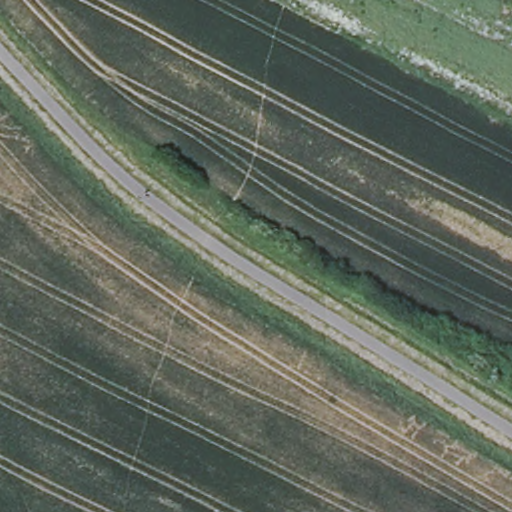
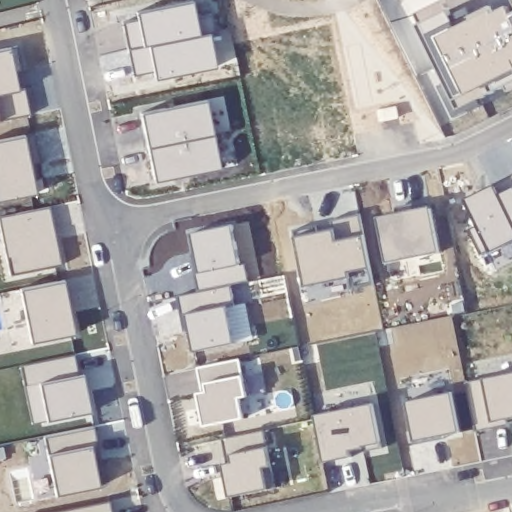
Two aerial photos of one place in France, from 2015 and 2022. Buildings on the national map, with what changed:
new [(424,39),(509,0),(512,0),(512,75),(453,103),(424,39)]
new [(123,22),(138,19),(136,12),(193,1),(196,17),(212,14),(216,32),(128,49),(123,22)]
new [(128,49),(210,32),(217,67),(155,80),(154,72),(133,76),(128,49)]
new [(9,50),(18,92),(25,91),(31,119),(0,126),(0,51),(9,50)]
new [(166,108),(174,106),(207,100),(213,134),(148,147),(141,113),(166,108)]
new [(394,107),(396,117),(377,122),(375,112),(394,107)]
new [(168,179),(151,165),(148,147),(213,134),(221,167),(188,175),(180,176),(168,179)]
new [(25,135),(38,197),(0,202),(0,139),(25,135)]
new [(512,175),(512,185),(509,176),(512,175)]
new [(494,197),(512,189),(512,242),(489,252),(462,201),(491,187),(494,197)]
new [(49,209),(59,265),(11,276),(0,220),(0,218),(49,209)]
new [(426,209),(437,254),(385,264),(374,217),(426,209)]
new [(332,231),(331,222),(359,216),(366,267),(346,272),(347,278),(301,285),(291,237),(332,231)]
new [(233,226),(238,266),(243,264),(246,282),(228,286),(232,307),(224,307),(231,343),(191,352),(179,298),(199,292),(188,234),(233,226)]
new [(65,283),(76,336),(33,345),(24,290),(65,283)]
new [(74,357),(78,377),(85,377),(91,414),(32,425),(23,367),(74,357)]
new [(237,361),(243,397),(237,398),(240,420),(201,427),(195,395),(201,393),(195,368),(237,361)]
new [(512,420),(506,421),(506,424),(478,430),(468,382),(512,376),(512,420)]
new [(452,392),(460,434),(412,442),(405,403),(452,392)]
new [(372,405),(381,449),(322,461),(314,415),(372,405)]
new [(95,428),(99,448),(94,450),(99,490),(58,496),(44,440),(95,428)]
new [(264,434),(269,467),(259,469),(264,490),(228,497),(221,465),(228,463),(224,440),(264,434)]
new [(109,506),(110,512),(69,512),(109,506)]

